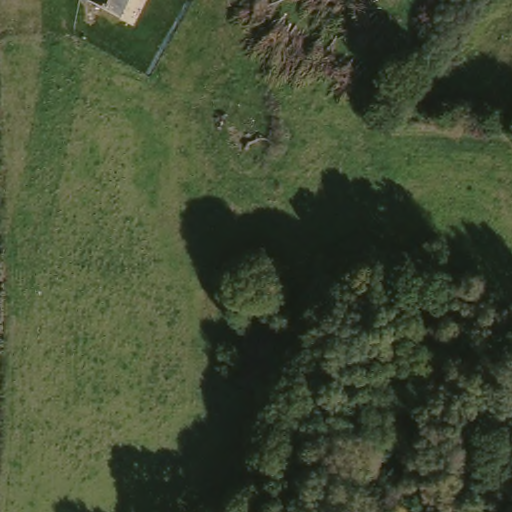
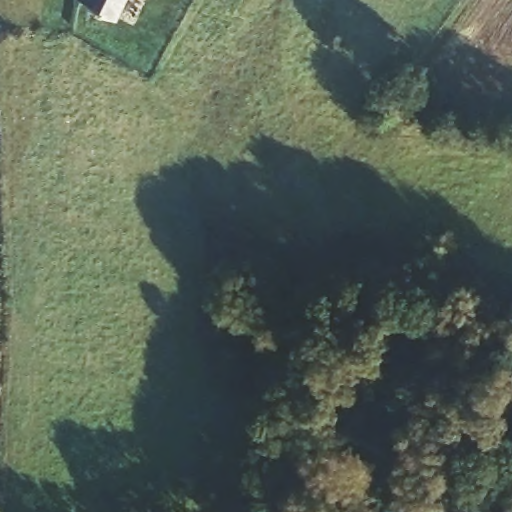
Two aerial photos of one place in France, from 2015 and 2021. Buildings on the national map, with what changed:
unchanged [(108,0),(131,0),(127,9),(108,0)]

